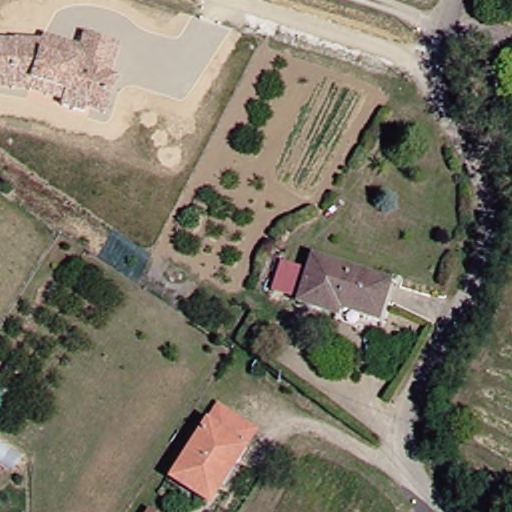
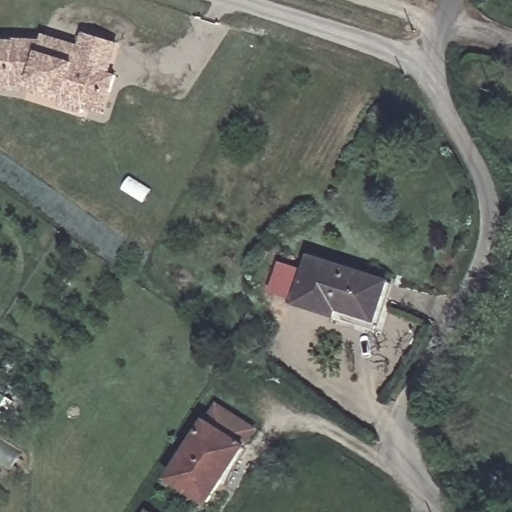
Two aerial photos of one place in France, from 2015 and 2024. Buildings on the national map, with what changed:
unchanged [(64,107),(65,102),(31,92),(0,91),(0,43),(16,44),(16,42),(43,42),(45,37),(81,47),(85,35),(116,44),(108,74),(118,77),(113,94),(106,115),(87,110),(86,114),(64,107)]
unchanged [(373,318),(370,330),(326,317),(288,305),(290,297),(268,291),(278,259),(299,265),(303,251),(383,278),(373,318)]
unchanged [(248,428),(225,462),(228,465),(203,504),(164,478),(211,407),(248,428)]
unchanged [(150,512),(147,512),(147,511),(150,512)]

